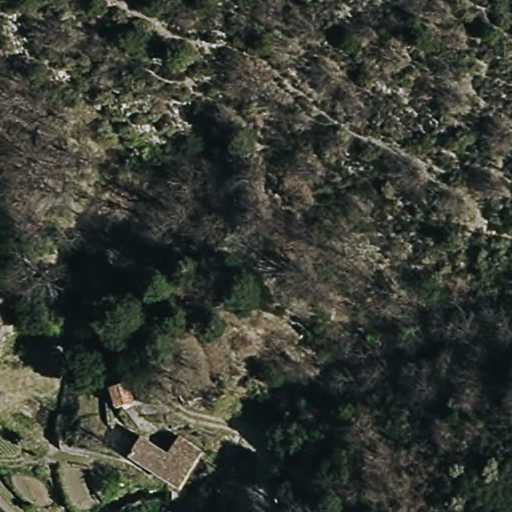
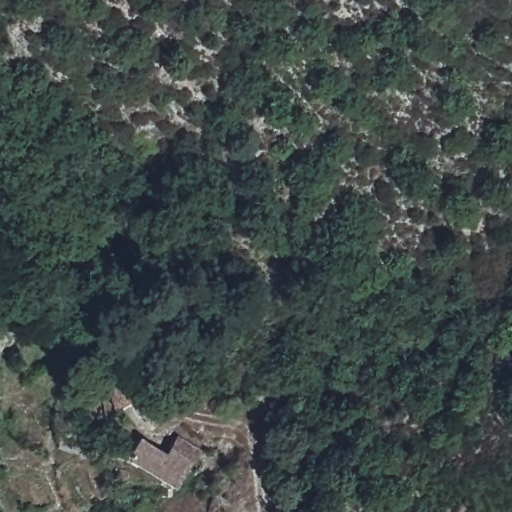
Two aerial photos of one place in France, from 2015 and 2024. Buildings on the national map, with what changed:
unchanged [(127,402),(112,397),(123,382),(135,390),(127,402)]
unchanged [(133,463),(140,442),(173,453),(179,434),(200,441),(188,481),(133,463)]

